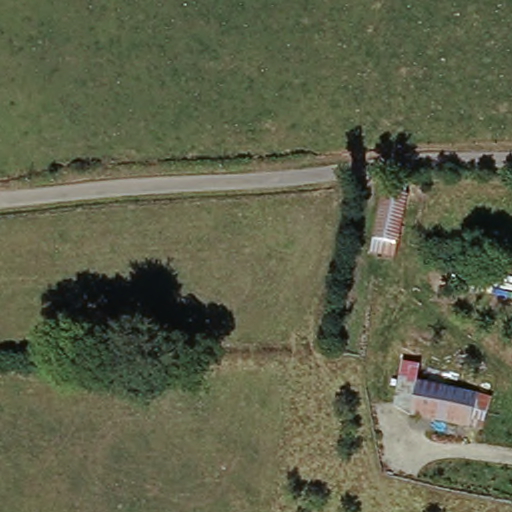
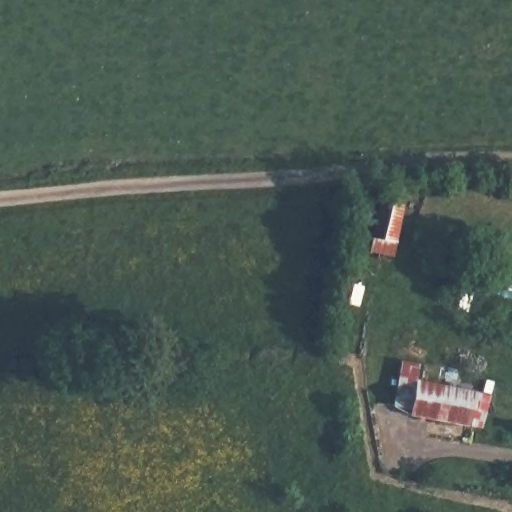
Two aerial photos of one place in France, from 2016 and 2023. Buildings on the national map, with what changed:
unchanged [(416,201),(392,268),(365,259),(389,192),(416,201)]
unchanged [(471,396),(464,437),(407,425),(413,384),(471,396)]

